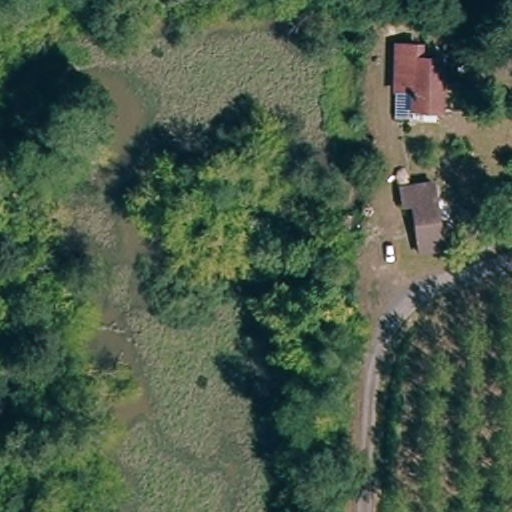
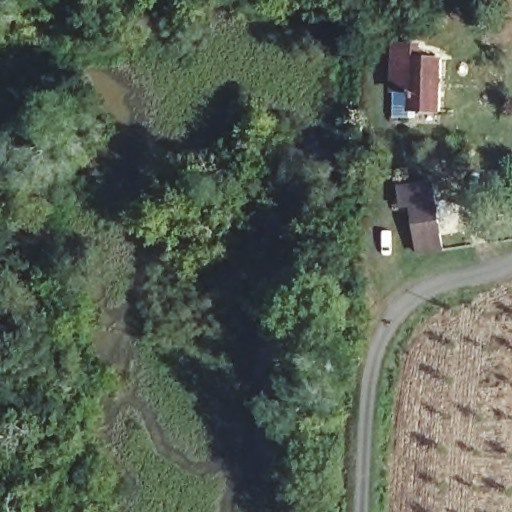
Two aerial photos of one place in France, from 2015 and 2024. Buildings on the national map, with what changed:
unchanged [(397,114),(398,91),(394,91),(394,47),(419,47),(420,61),(434,60),(434,112),(397,114)]
unchanged [(419,229),(418,215),(418,205),(403,205),(403,180),(441,178),(444,214),(445,229),(445,252),(422,255),(419,229)]

